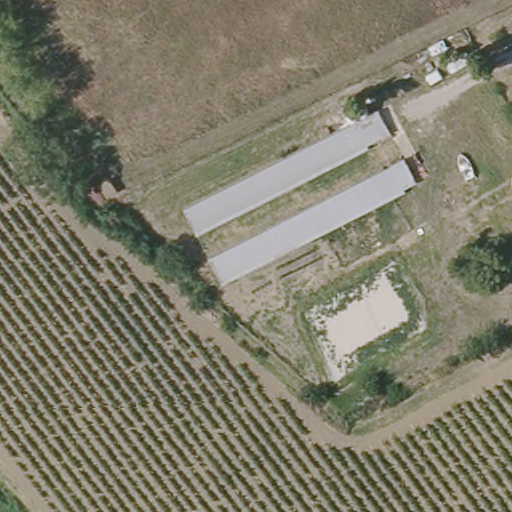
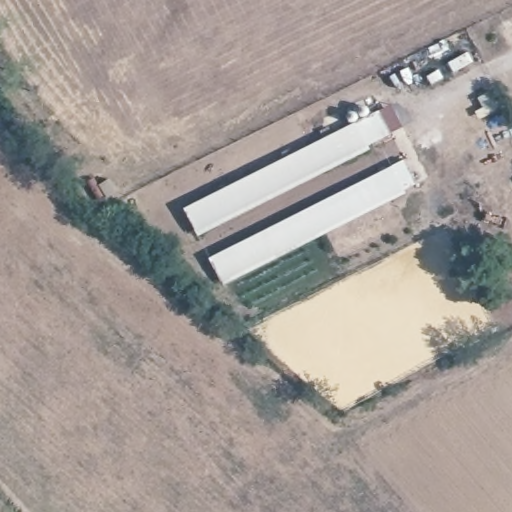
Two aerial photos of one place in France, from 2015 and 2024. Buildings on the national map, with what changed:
unchanged [(385,106),(395,125),(198,224),(188,203),(385,106)]
unchanged [(395,125),(397,130),(201,228),(198,224),(395,125)]
unchanged [(410,154),(420,175),(223,274),(213,253),(410,154)]
unchanged [(420,175),(422,180),(226,278),(223,274),(420,175)]
unchanged [(117,192),(107,198),(99,184),(109,178),(117,192)]

